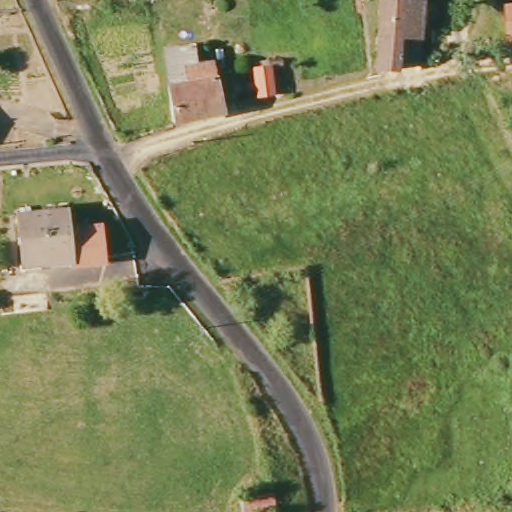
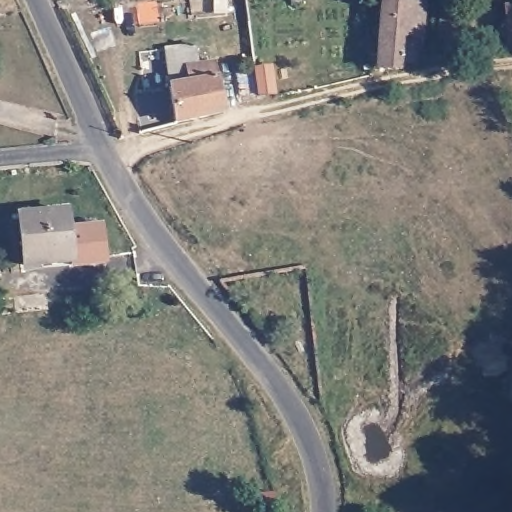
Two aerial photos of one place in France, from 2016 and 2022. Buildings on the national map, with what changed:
unchanged [(397,64),(397,72),(377,72),(381,2),(420,2),(419,64),(397,64)]
unchanged [(512,3),(512,43),(504,44),(503,4),(512,3)]
unchanged [(195,44),(199,66),(215,64),(223,114),(177,123),(164,49),(195,44)]
unchanged [(271,67),(275,94),(259,96),(255,69),(271,67)]
unchanged [(63,207),(67,260),(22,263),(17,211),(63,207)]

